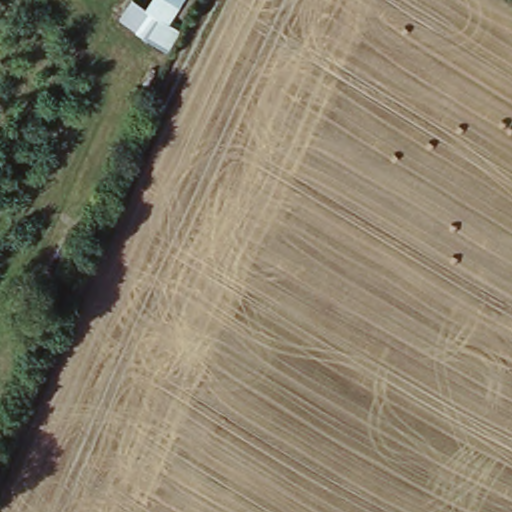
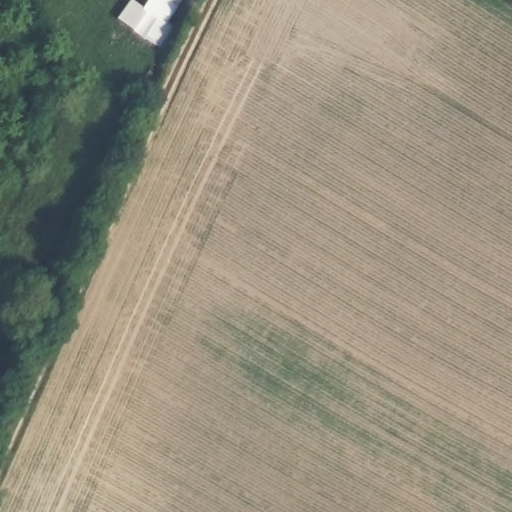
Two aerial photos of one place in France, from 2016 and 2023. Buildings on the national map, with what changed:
unchanged [(129,1),(144,9),(150,0),(182,0),(168,24),(180,30),(167,54),(116,24),(129,1)]

